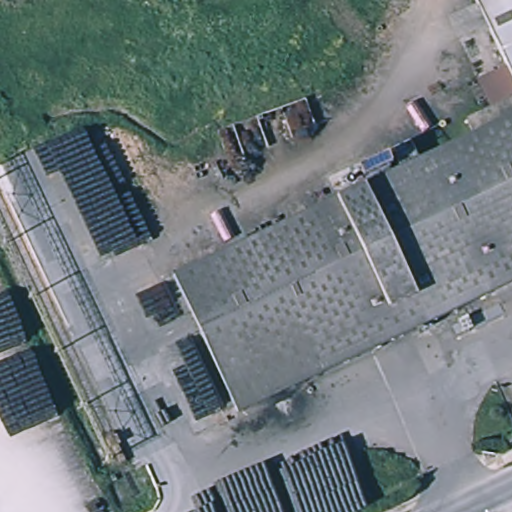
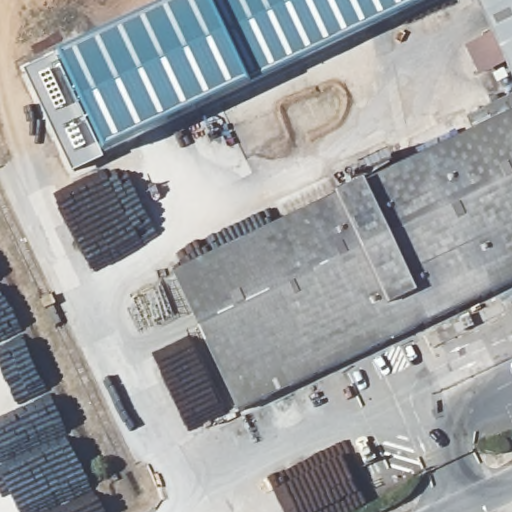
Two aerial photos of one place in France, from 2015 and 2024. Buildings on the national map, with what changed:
new [(106,154),(60,58),(185,0),(434,0),(250,87),(106,154)]
unchanged [(480,0),(512,0),(512,90),(502,71),(470,5),(480,0)]
new [(74,175),(26,73),(56,59),(105,161),(74,175)]
unchanged [(165,281),(357,189),(348,172),(405,146),(415,164),(468,139),(460,122),(483,112),(512,98),(512,286),(230,419),(165,281)]

